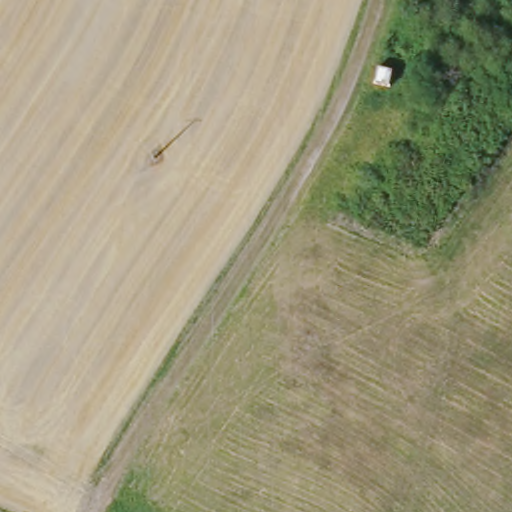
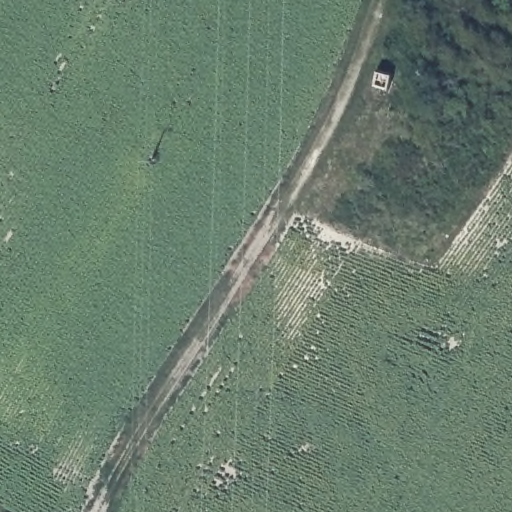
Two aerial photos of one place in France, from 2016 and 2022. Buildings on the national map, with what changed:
unchanged [(379,66),(397,70),(393,89),(375,85),(379,66)]

